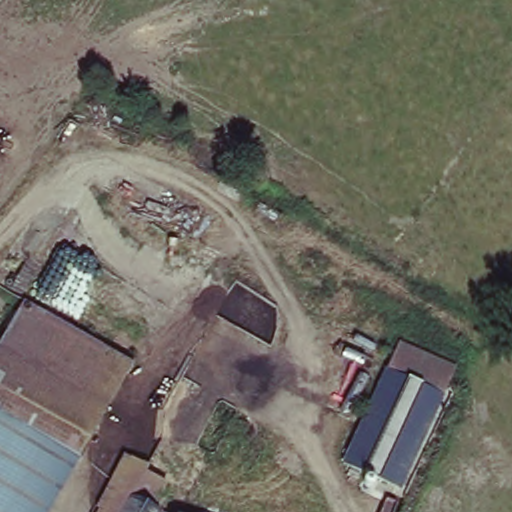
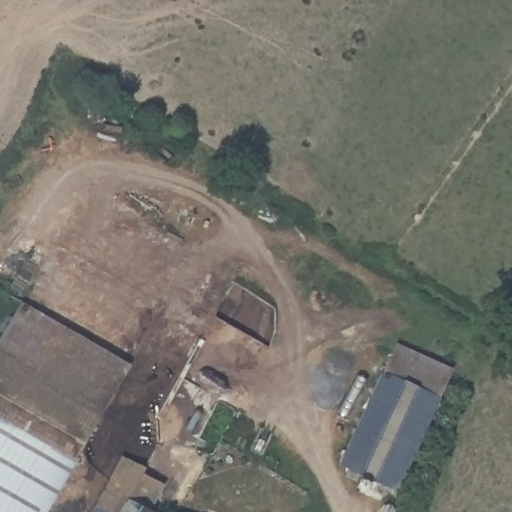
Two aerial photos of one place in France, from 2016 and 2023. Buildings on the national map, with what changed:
unchanged [(137,363),(111,410),(0,350),(0,343),(29,302),(137,363)]
unchanged [(452,370),(396,496),(340,468),(392,345),(452,370)]
unchanged [(0,350),(111,410),(84,461),(0,415),(0,350)]
unchanged [(52,512),(0,485),(0,415),(84,461),(54,512),(52,512)]
unchanged [(144,476),(164,484),(158,512),(94,512),(121,455),(149,468),(144,476)]
unchanged [(0,512),(0,485),(50,511),(49,512),(0,512)]

